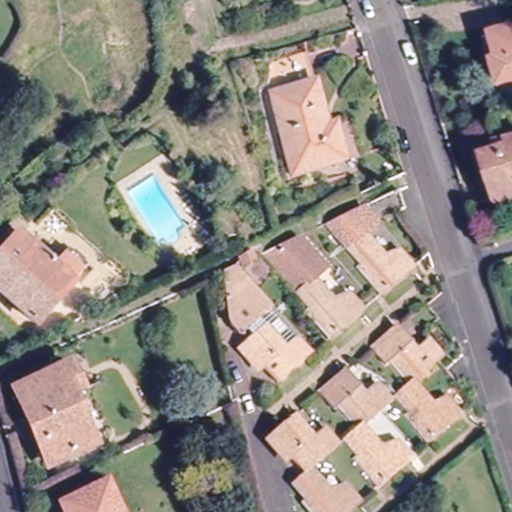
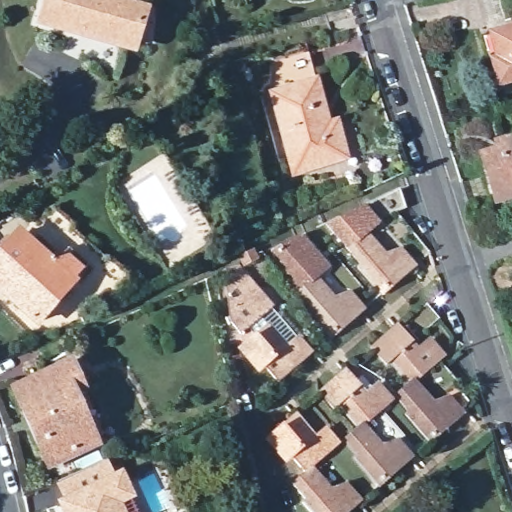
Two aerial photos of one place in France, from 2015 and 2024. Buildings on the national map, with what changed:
new [(43,0),(118,0),(151,10),(136,57),(35,26),(43,0)]
unchanged [(512,27),(512,76),(499,80),(492,57),(500,55),(493,32),(512,27)]
unchanged [(342,139),(350,166),(293,180),(286,150),(273,97),(263,61),(285,54),(308,47),(318,87),(330,131),(340,128),(342,139)]
unchanged [(479,158),(495,153),(491,143),(512,137),(512,195),(492,201),(490,194),(479,158)]
unchanged [(406,199),(380,211),(372,192),(399,180),(406,199)]
unchanged [(386,295),(361,268),(365,264),(351,249),(323,216),(356,200),(378,225),(367,234),(389,257),(404,255),(416,268),(386,295)]
unchanged [(316,280),(337,302),(352,300),(365,313),(334,341),(310,313),(312,312),(258,247),(264,245),(294,230),(328,270),(316,280)]
unchanged [(75,284),(40,325),(0,291),(0,261),(20,237),(57,268),(70,253),(87,269),(75,284)]
unchanged [(226,318),(229,294),(220,276),(231,266),(276,310),(269,318),(255,333),(242,342),(226,318)]
unchanged [(418,299),(431,312),(405,337),(412,345),(421,337),(440,357),(436,360),(451,375),(427,397),(433,403),(453,403),(462,414),(431,442),(408,417),(412,413),(396,397),(408,387),(385,361),(381,363),(367,347),(418,299)]
unchanged [(276,386),(267,367),(256,377),(235,348),(242,342),(255,333),(269,318),(282,345),(295,336),(310,352),(276,386)]
unchanged [(77,393),(70,397),(90,443),(44,465),(11,393),(66,367),(77,393)]
unchanged [(336,408),(332,412),(316,395),(343,371),(361,390),(371,382),(390,402),(362,428),(358,432),(336,408)]
unchanged [(288,452),(284,456),(265,435),(291,412),(310,432),(320,425),(338,445),(312,470),(308,473),(288,452)]
unchanged [(362,428),(381,451),(401,448),(411,460),(380,489),(357,463),(361,459),(347,443),(358,432),(362,428)]
unchanged [(312,470),(331,492),(348,490),(360,502),(348,512),(313,512),(306,505),(309,502),(295,486),(308,473),(312,470)]
unchanged [(117,512),(65,512),(61,505),(105,485),(117,512)]

